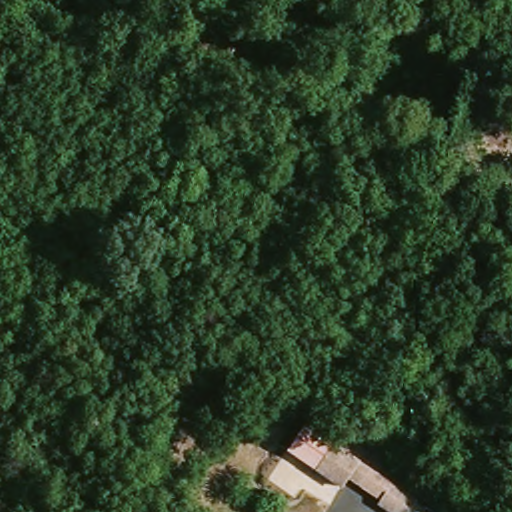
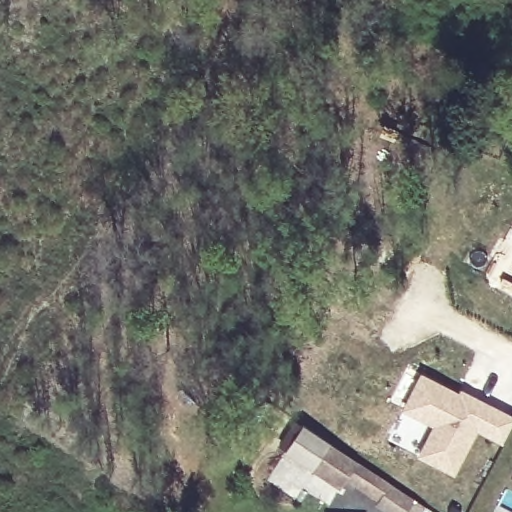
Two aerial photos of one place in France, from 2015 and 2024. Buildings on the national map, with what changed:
new [(418,376),(457,394),(459,390),(488,403),(455,472),(420,456),(435,425),(425,417),(404,407),(418,376)]
unchanged [(391,512),(380,505),(383,502),(348,480),(342,490),(316,475),(332,449),(393,485),(430,506),(426,512),(391,512)]

